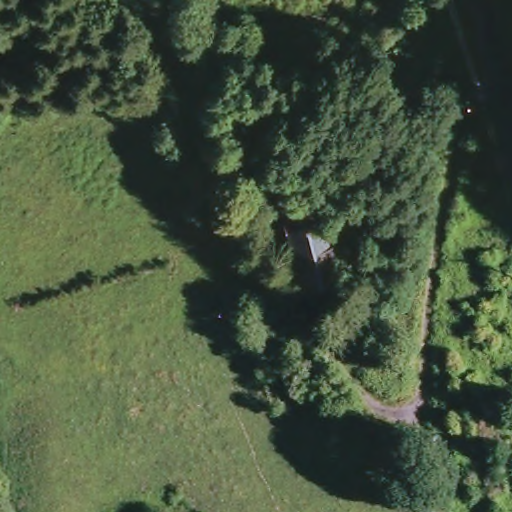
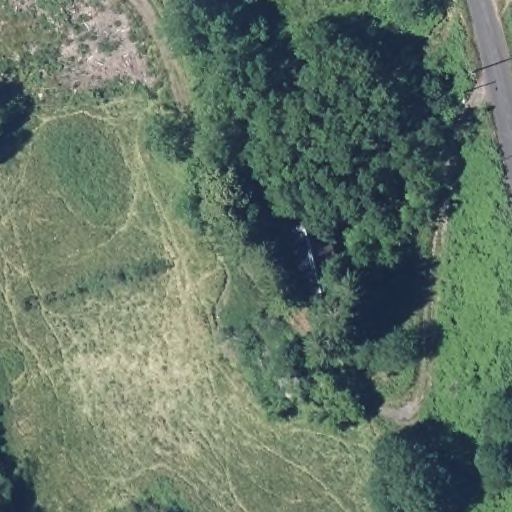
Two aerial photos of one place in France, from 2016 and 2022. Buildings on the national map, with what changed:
unchanged [(312,295),(294,229),(287,204),(312,197),(319,222),(330,219),(351,283),(312,295)]

